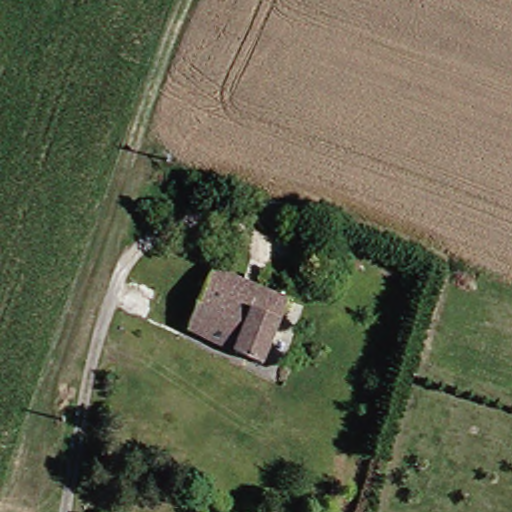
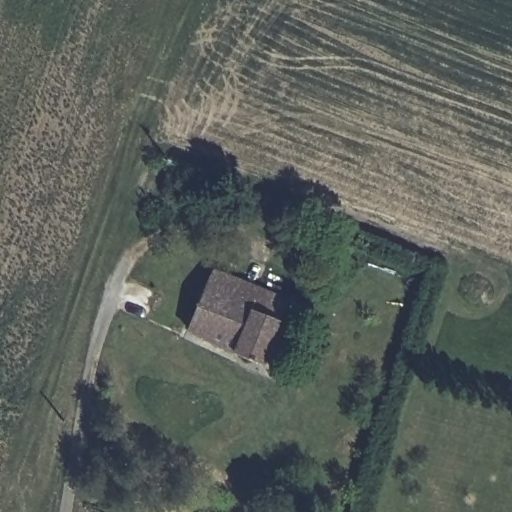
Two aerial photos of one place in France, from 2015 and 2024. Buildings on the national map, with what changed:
unchanged [(280,229),(265,224),(271,204),(286,210),(280,229)]
unchanged [(359,271),(350,270),(350,261),(360,261),(359,271)]
unchanged [(276,321),(258,365),(207,344),(205,342),(183,332),(209,268),(226,275),(255,287),(285,299),(276,321)]

